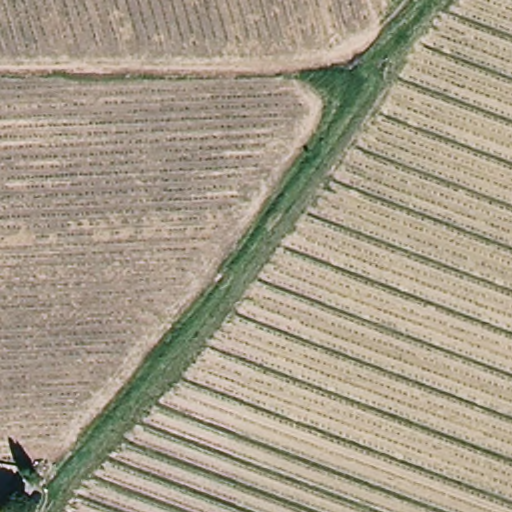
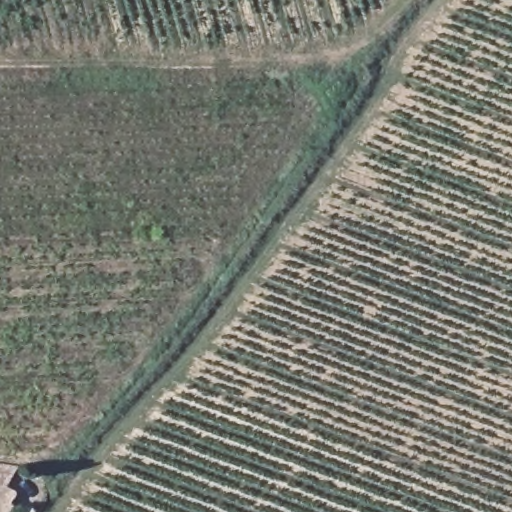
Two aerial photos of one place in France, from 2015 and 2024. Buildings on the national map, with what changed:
unchanged [(22,466),(10,486),(23,493),(11,512),(0,512),(0,463),(22,466)]

